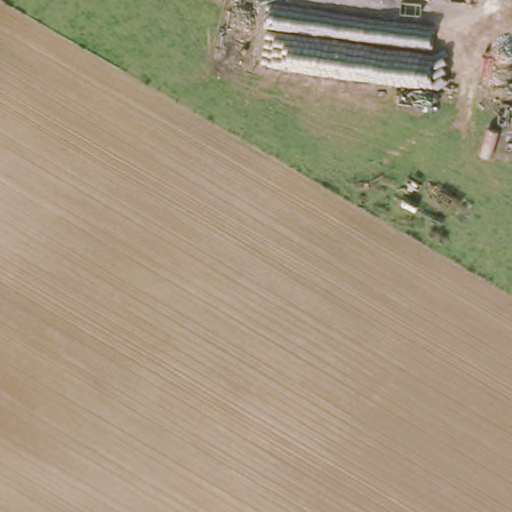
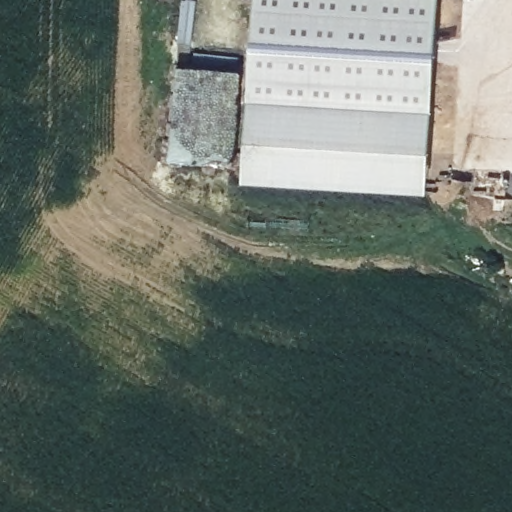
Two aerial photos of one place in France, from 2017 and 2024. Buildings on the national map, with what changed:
new [(430,189),(245,176),(260,0),(441,0),(430,189)]
new [(240,67),(243,67),(235,162),(170,156),(178,62),(193,63),(193,48),(240,52),(240,67)]

